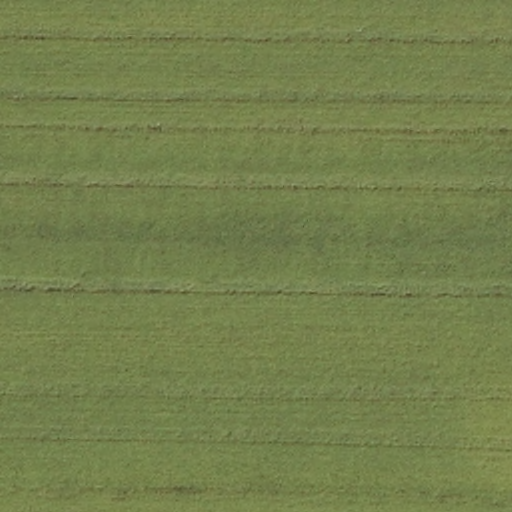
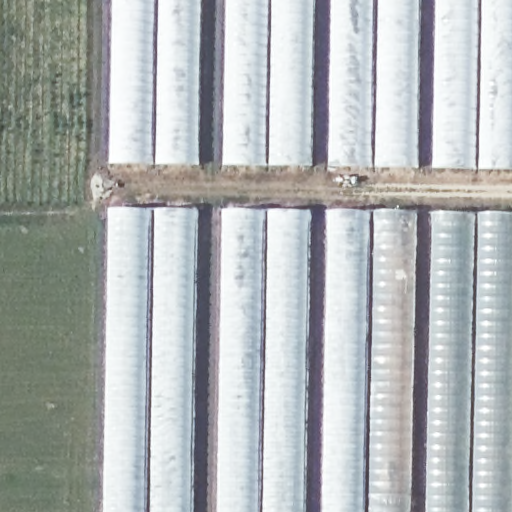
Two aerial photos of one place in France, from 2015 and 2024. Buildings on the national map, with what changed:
new [(111,165),(114,0),(512,0),(512,172),(111,165)]
new [(106,512),(110,205),(512,210),(512,512),(106,512)]

